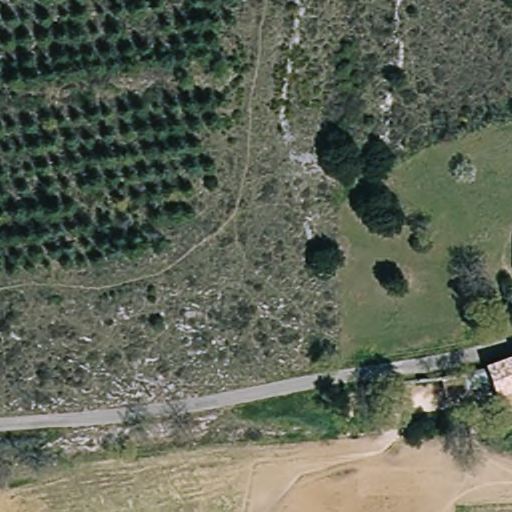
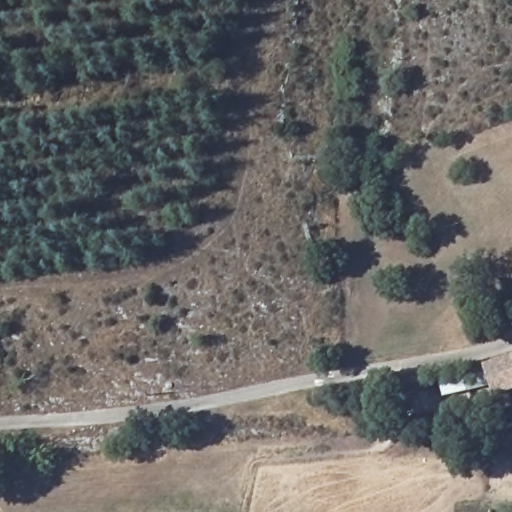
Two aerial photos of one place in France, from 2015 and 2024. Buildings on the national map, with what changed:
unchanged [(512,239),(512,275),(511,276),(509,239),(512,239)]
unchanged [(493,397),(483,371),(512,360),(512,389),(493,397)]

